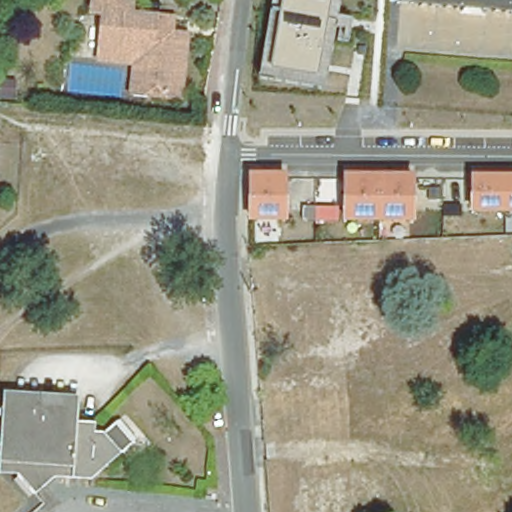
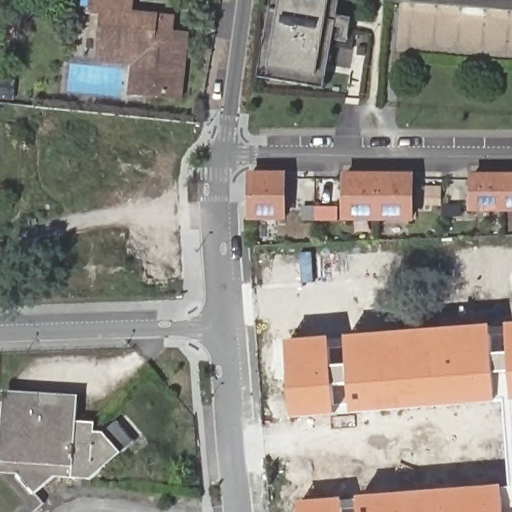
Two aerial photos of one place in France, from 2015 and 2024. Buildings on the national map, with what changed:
unchanged [(137,48),(104,45),(104,39),(106,0),(135,0),(135,1),(171,5),(176,5),(175,19),(189,20),(184,81),(149,79),(135,78),(137,48)]
unchanged [(317,75),(271,68),(284,0),(330,0),(317,75)]
unchanged [(512,12),(377,1),(377,0),(512,0),(512,12)]
unchanged [(11,85),(10,104),(0,103),(0,84),(11,85)]
unchanged [(345,222),(345,171),(416,172),(415,222),(345,222)]
unchanged [(250,222),(249,172),(286,172),(288,221),(250,222)]
unchanged [(471,173),(512,174),(512,215),(470,215),(471,173)]
demolished [(510,261),(473,262),(473,243),(509,241),(510,261)]
demolished [(442,267),(390,269),(389,245),(441,244),(442,267)]
demolished [(367,329),(303,333),(300,294),(365,290),(367,329)]
new [(512,451),(507,400),(293,410),(290,345),(512,328),(512,451)]
unchanged [(113,425),(130,444),(120,453),(90,479),(53,476),(35,494),(18,474),(0,472),(0,457),(4,395),(77,400),(76,423),(95,424),(94,433),(102,434),(113,425)]
demolished [(477,452),(512,451),(512,485),(476,485),(477,452)]
demolished [(308,512),(305,472),(347,469),(351,512),(308,512)]
new [(512,487),(512,512),(300,512),(299,505),(512,487)]

